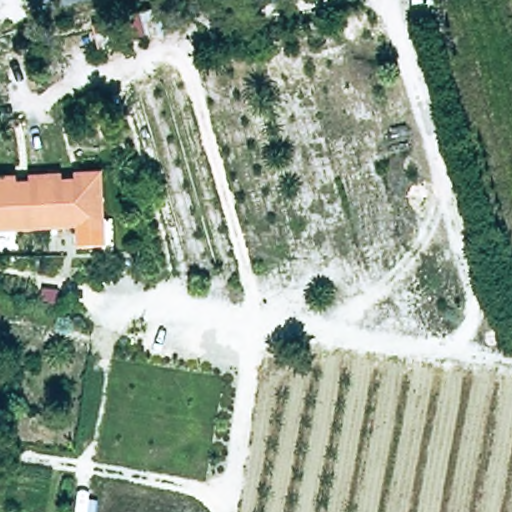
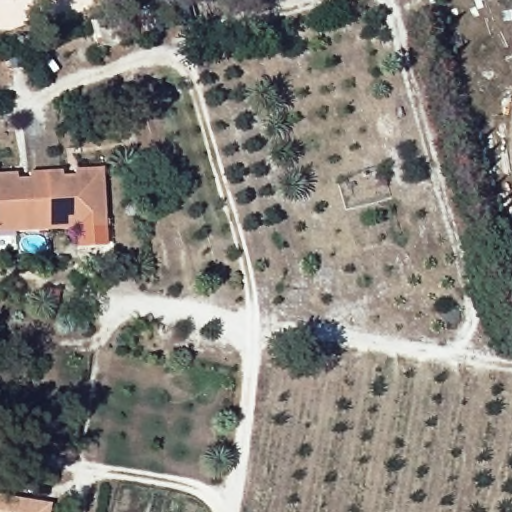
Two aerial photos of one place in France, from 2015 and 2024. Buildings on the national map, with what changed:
unchanged [(15,181),(27,180),(27,174),(59,172),(59,179),(63,178),(72,178),(72,172),(100,170),(100,176),(102,221),(103,227),(84,228),(76,229),(17,232),(0,233),(0,176),(14,175),(15,181)]
new [(46,512),(0,512),(0,498),(47,505),(46,512)]

